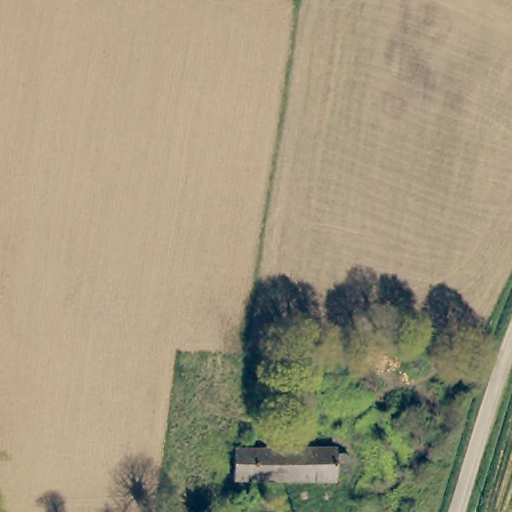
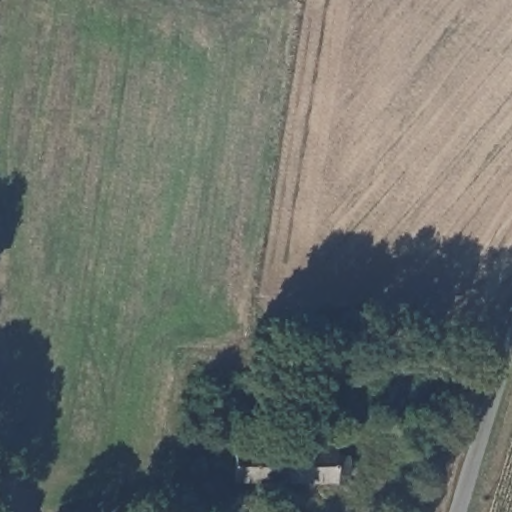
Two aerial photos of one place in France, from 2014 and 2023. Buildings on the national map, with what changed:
unchanged [(237,447),(277,448),(337,451),(337,453),(347,453),(352,454),(352,475),(337,474),(336,482),(236,481),(236,477),(237,447)]

